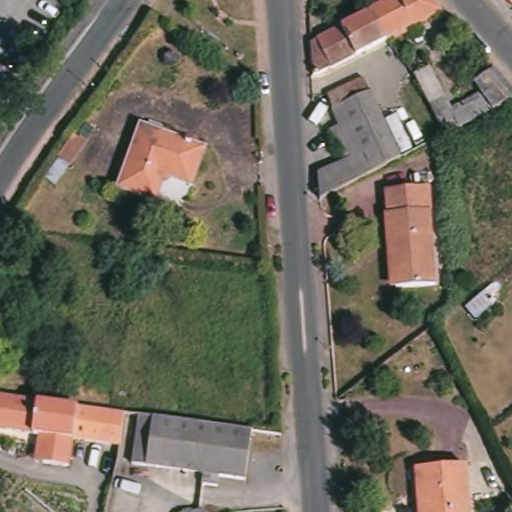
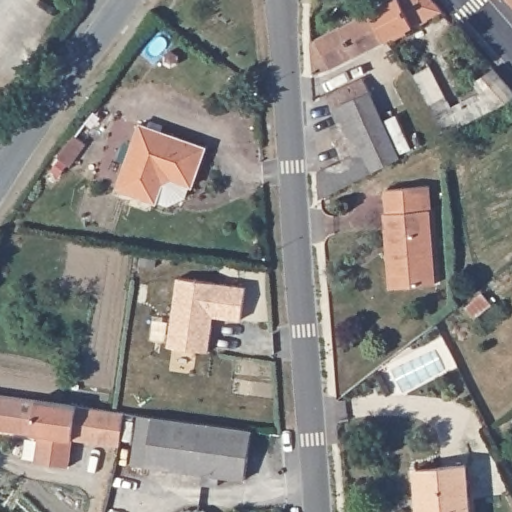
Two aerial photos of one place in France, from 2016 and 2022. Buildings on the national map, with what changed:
unchanged [(388,0),(436,0),(445,10),(387,41),(367,11),(388,0)]
unchanged [(512,9),(503,0),(512,0),(512,9)]
unchanged [(367,11),(387,41),(318,78),(315,37),(367,11)]
unchanged [(405,73),(430,61),(458,111),(486,99),(475,77),(493,70),(512,91),(512,100),(482,115),(440,136),(425,108),(424,106),(405,73)]
unchanged [(333,120),(345,115),(338,100),(332,88),(357,77),(363,89),(381,128),(395,157),(390,160),(318,195),(316,167),(348,151),(333,120)]
unchanged [(209,148),(186,202),(171,208),(119,189),(143,123),(209,148)]
unchanged [(386,235),(386,213),(390,213),(388,187),(435,183),(436,210),(430,211),(437,285),(431,291),(396,293),(391,234),(386,235)]
new [(242,319),(216,314),(209,350),(169,343),(179,277),(246,286),(242,319)]
unchanged [(75,404),(71,436),(67,463),(36,460),(39,435),(0,430),(0,394),(75,404)]
unchanged [(122,443),(71,436),(75,404),(110,408),(127,411),(127,413),(122,443)]
unchanged [(200,484),(202,474),(128,464),(135,412),(250,427),(243,479),(217,476),(215,486),(200,484)]
unchanged [(468,512),(418,512),(415,468),(466,465),(468,512)]

